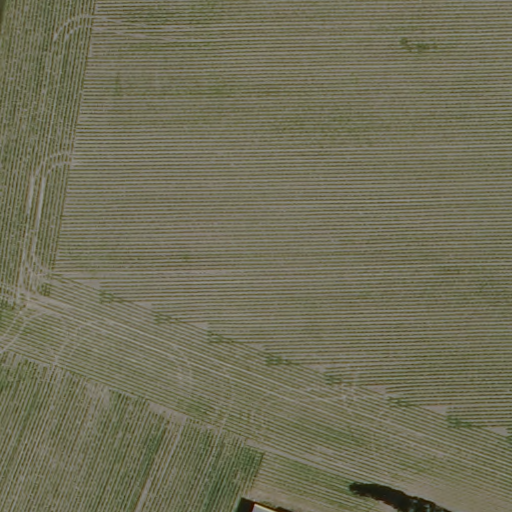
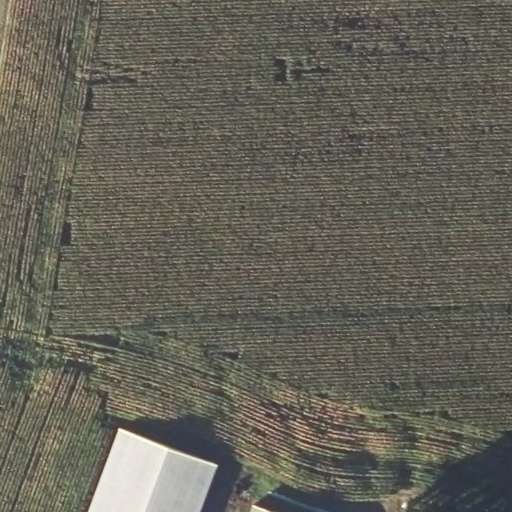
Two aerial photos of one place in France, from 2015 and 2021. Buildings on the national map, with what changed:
new [(217,462),(199,512),(92,512),(122,428),(217,462)]
unchanged [(276,512),(252,512),(254,504),(276,512)]

